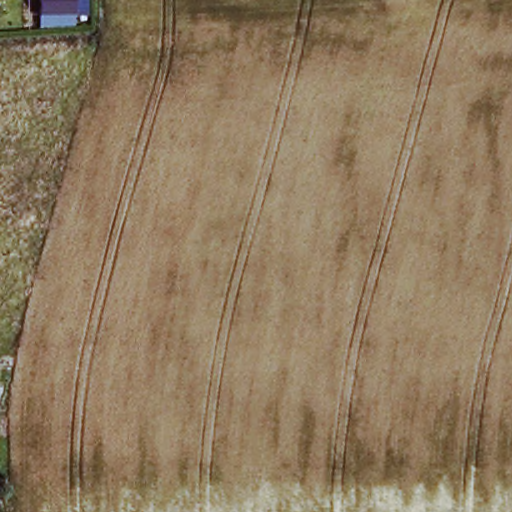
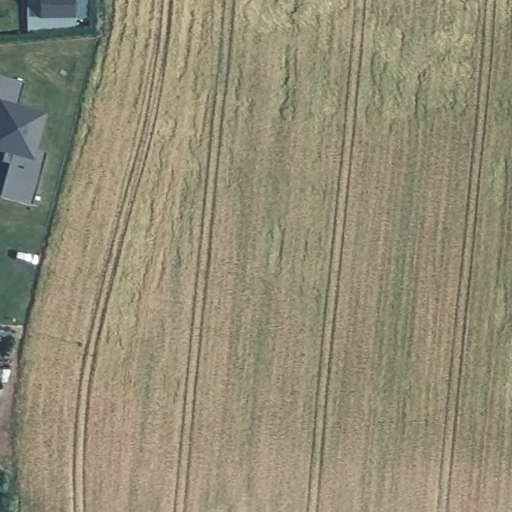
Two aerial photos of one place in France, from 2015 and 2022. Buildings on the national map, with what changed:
unchanged [(89,0),(89,21),(73,19),(74,31),(41,31),(42,0),(89,0)]
new [(26,82),(19,107),(48,114),(38,151),(47,155),(34,204),(1,198),(10,163),(2,161),(5,152),(0,151),(0,76),(26,82)]

